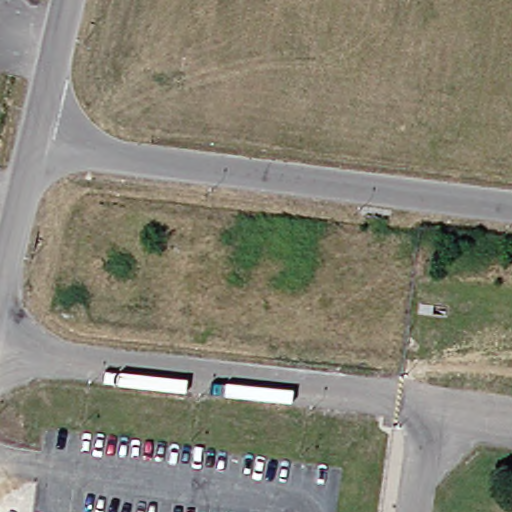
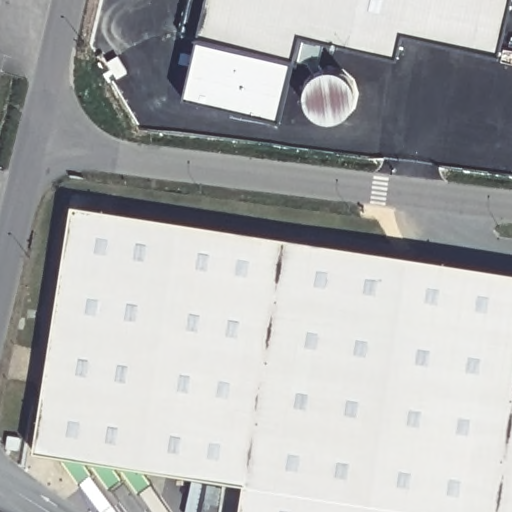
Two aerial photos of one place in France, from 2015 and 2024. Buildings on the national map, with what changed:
new [(207,0),(510,0),(498,52),(402,30),(396,55),(300,33),(279,119),(185,95),(199,37),(207,0)]
new [(249,492),(39,460),(77,213),(512,280),(512,512),(246,512),(249,492)]

